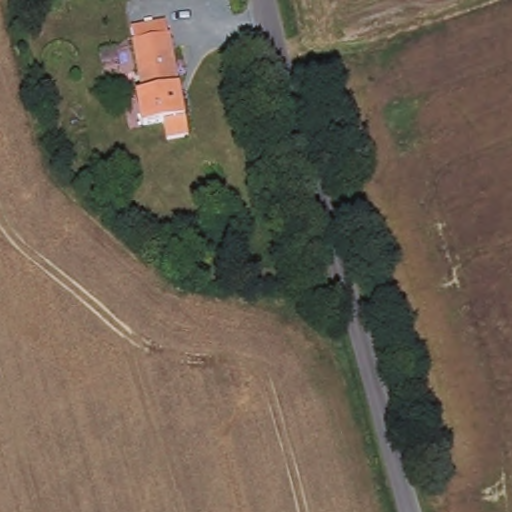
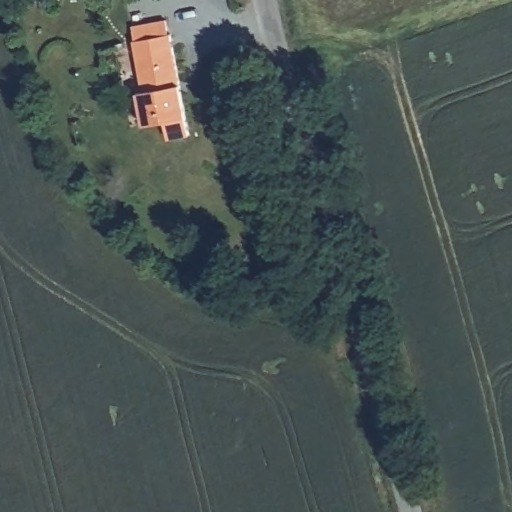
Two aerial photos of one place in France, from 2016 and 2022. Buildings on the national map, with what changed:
unchanged [(171,142),(167,126),(148,129),(142,96),(147,95),(138,41),(136,29),(171,23),(174,35),(192,136),(171,142)]

